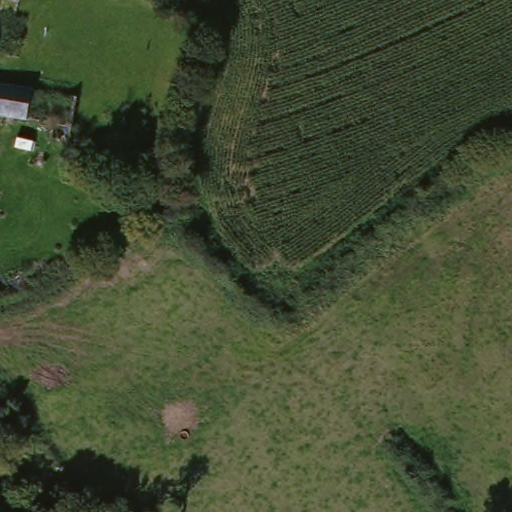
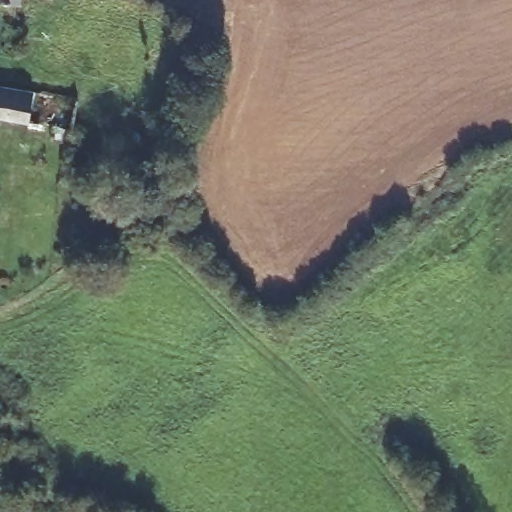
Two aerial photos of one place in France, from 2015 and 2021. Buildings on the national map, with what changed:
unchanged [(0,4),(0,0),(17,0),(17,2),(0,4)]
unchanged [(67,106),(62,131),(68,133),(62,147),(42,145),(42,130),(0,123),(0,92),(64,102),(67,106)]

